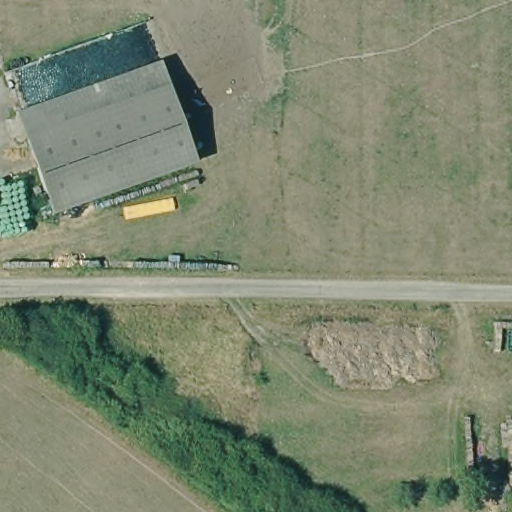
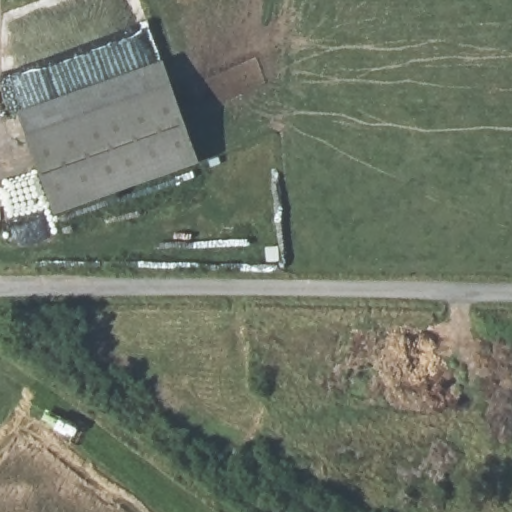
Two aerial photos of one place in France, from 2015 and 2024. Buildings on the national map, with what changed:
unchanged [(148,19),(201,158),(60,213),(5,71),(148,19)]

